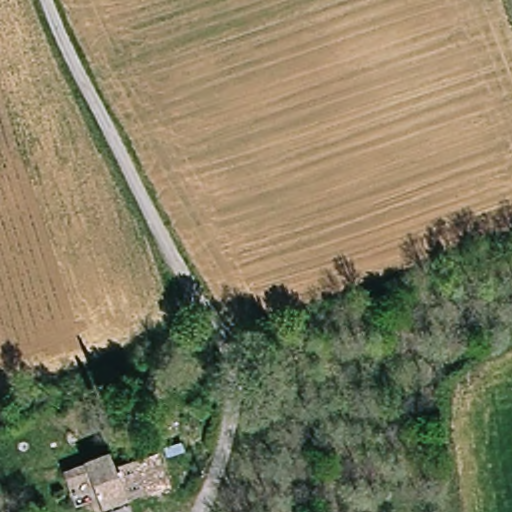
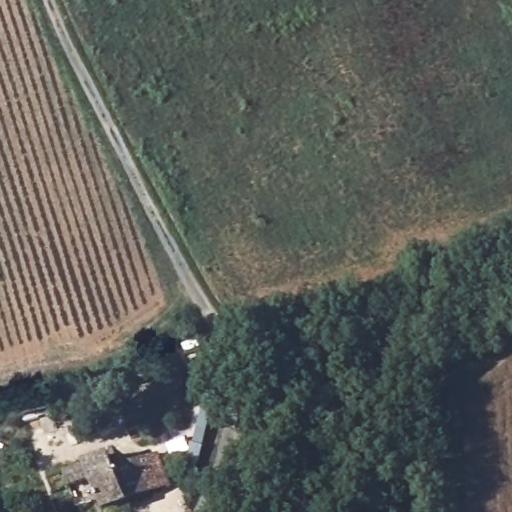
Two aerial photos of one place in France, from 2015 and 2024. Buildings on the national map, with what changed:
unchanged [(112,467),(134,458),(151,453),(161,490),(148,497),(110,512),(96,512),(87,491),(67,497),(62,474),(107,457),(112,467)]

